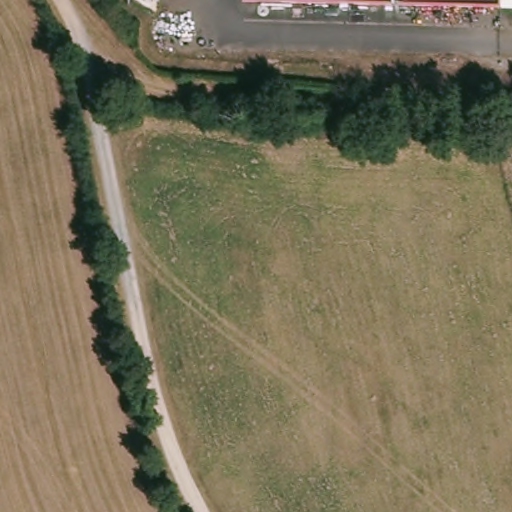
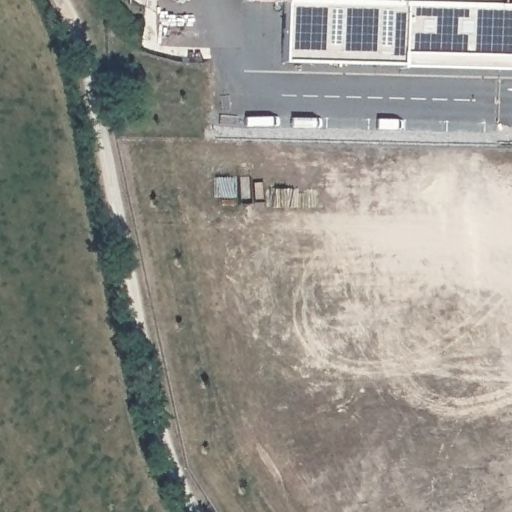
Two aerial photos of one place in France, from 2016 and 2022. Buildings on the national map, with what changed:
new [(494,7),(512,8),(512,70),(283,63),(285,0),(389,0),(493,1),(494,7)]
unchanged [(493,1),(384,0),(493,0),(493,1)]

